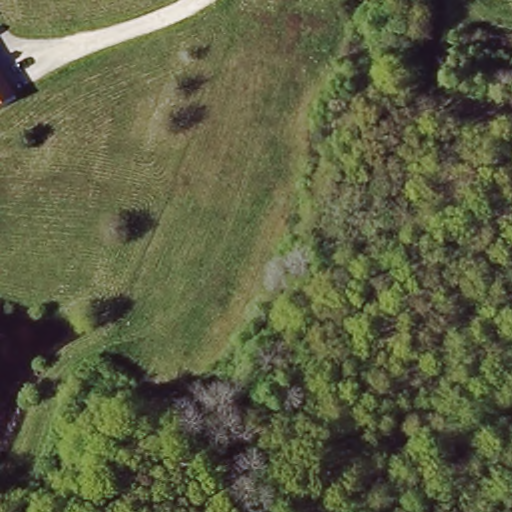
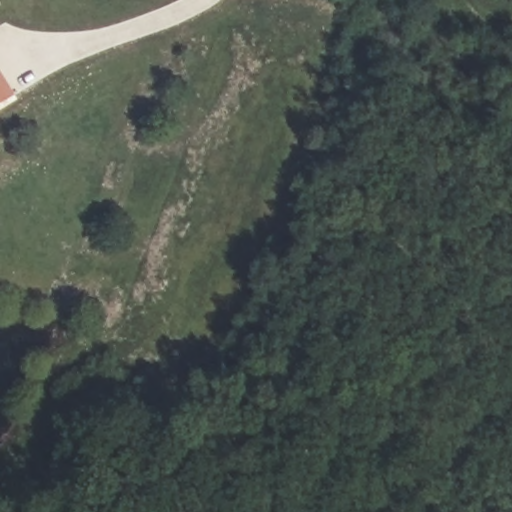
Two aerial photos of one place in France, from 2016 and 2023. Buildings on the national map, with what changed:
unchanged [(0,103),(0,72),(13,94),(0,103)]

